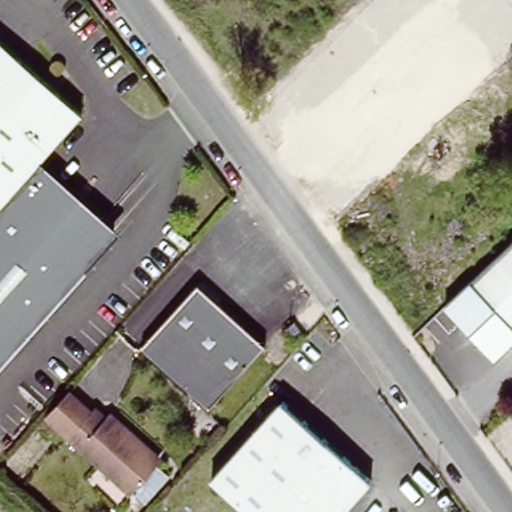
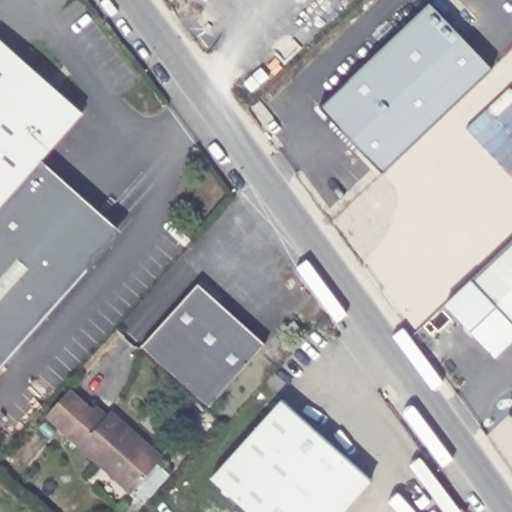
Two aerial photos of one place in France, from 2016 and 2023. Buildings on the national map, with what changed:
new [(436,3),(499,69),(387,175),(323,109),(436,3)]
unchanged [(76,106),(36,153),(28,163),(112,232),(0,366),(0,39),(76,106)]
unchanged [(36,153),(120,223),(112,232),(28,163),(36,153)]
unchanged [(512,336),(489,357),(441,305),(512,237),(512,336)]
unchanged [(267,337),(214,400),(146,343),(198,279),(267,337)]
unchanged [(303,331),(296,338),(286,326),(294,320),(303,331)]
unchanged [(70,385),(98,407),(75,434),(48,412),(70,385)]
unchanged [(376,476),(345,512),(256,512),(216,478),(287,397),(376,476)]
unchanged [(113,413),(117,409),(144,432),(140,439),(165,459),(141,488),(75,434),(98,407),(102,403),(113,413)]

